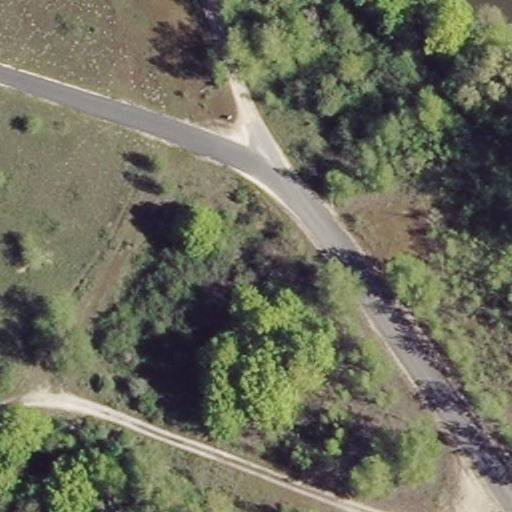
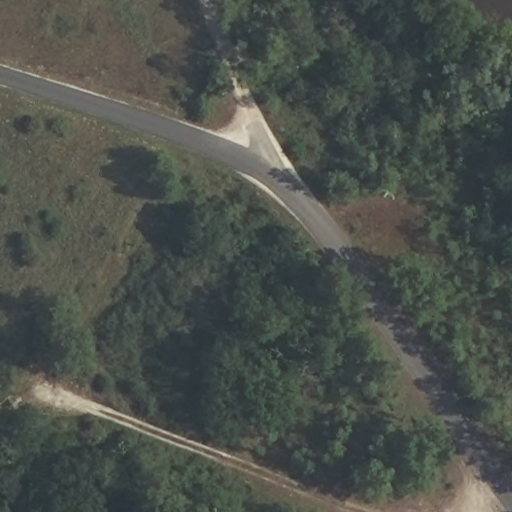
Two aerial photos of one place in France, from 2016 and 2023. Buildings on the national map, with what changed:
[]

